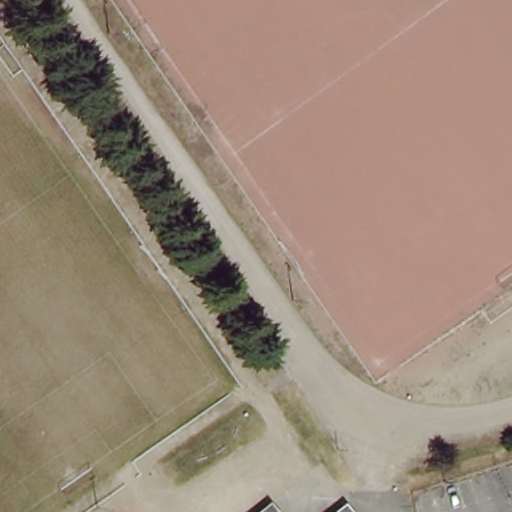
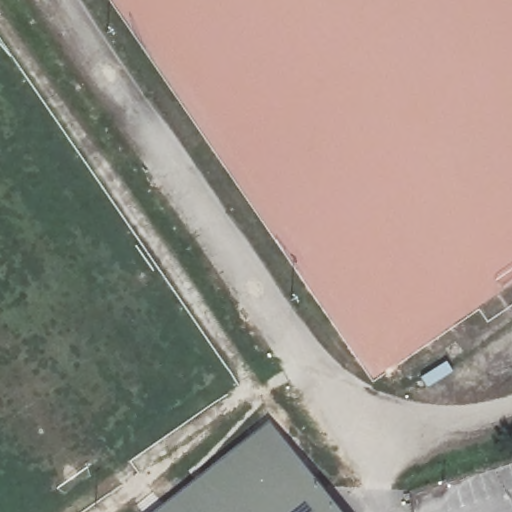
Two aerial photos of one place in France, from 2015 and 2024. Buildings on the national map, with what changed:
new [(338,512),(155,512),(268,422),(338,512)]

